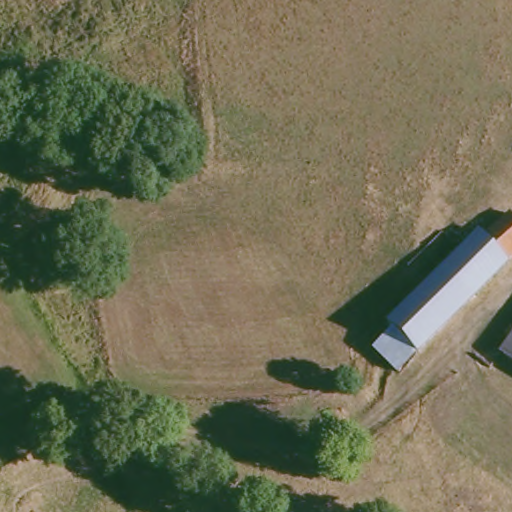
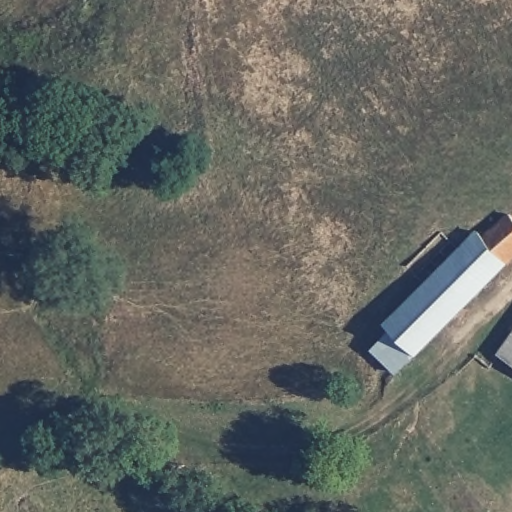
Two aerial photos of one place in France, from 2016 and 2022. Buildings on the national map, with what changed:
unchanged [(370,353),(387,334),(383,330),(475,237),(482,244),(505,219),(512,227),(512,258),(395,378),(370,353)]
unchanged [(500,352),(512,336),(512,360),(500,352)]

